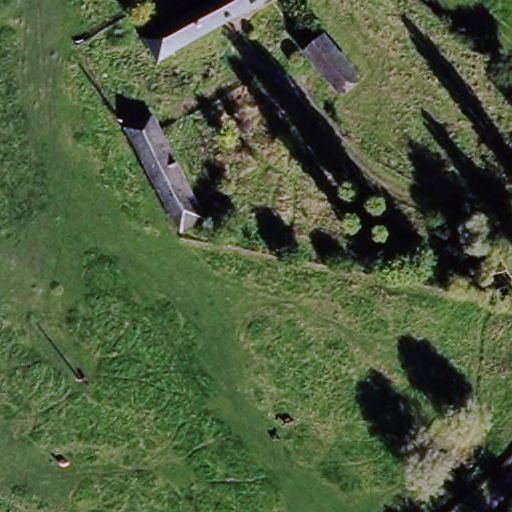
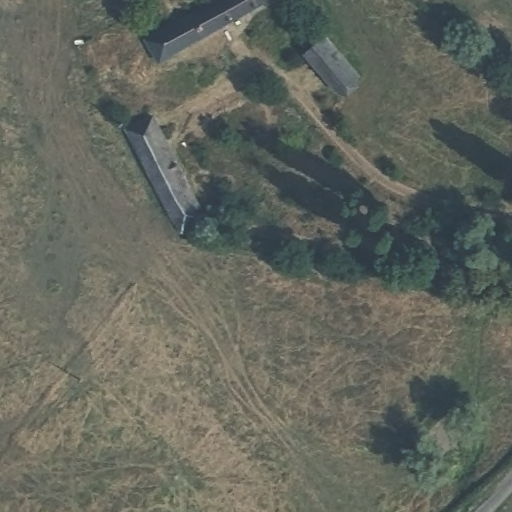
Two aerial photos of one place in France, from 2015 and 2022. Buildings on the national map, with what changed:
unchanged [(148,41),(227,0),(277,0),(158,62),(148,41)]
unchanged [(362,81),(343,97),(309,59),(328,42),(362,81)]
unchanged [(178,230),(127,128),(152,116),(203,217),(178,230)]

